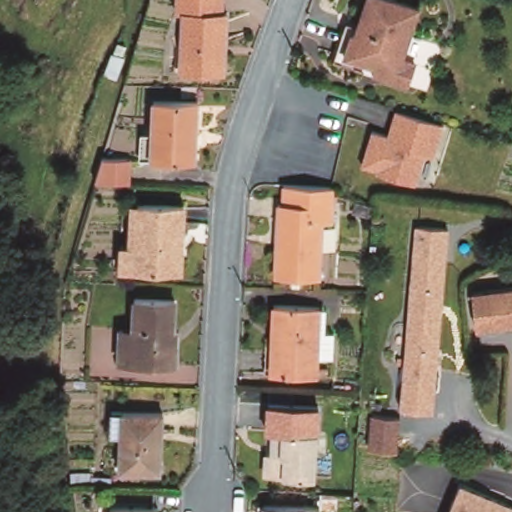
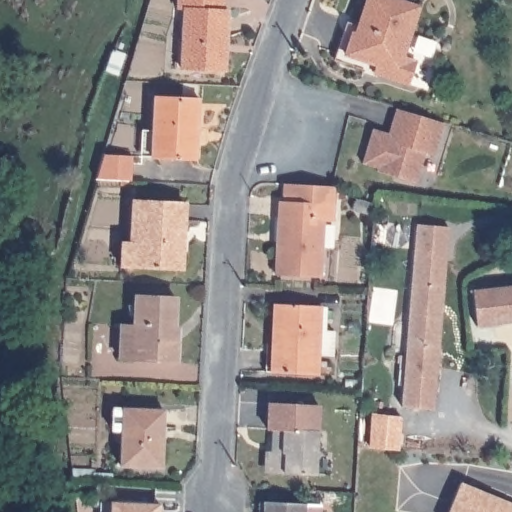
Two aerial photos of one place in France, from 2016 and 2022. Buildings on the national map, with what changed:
unchanged [(222,11),(220,71),(176,70),(178,10),(172,10),(173,0),(218,0),(217,11),(222,11)]
unchanged [(350,39),(361,6),(410,22),(392,72),(404,76),(397,97),(384,93),(357,86),(332,77),(325,75),(338,35),(350,39)]
unchanged [(431,106),(448,112),(437,148),(428,145),(421,174),(420,175),(413,173),(381,164),(382,161),(366,156),(377,119),(392,123),(400,98),(431,106)]
unchanged [(192,99),(190,159),(146,158),(149,99),(192,99)]
unchanged [(131,155),(130,180),(94,179),(102,153),(131,155)]
unchanged [(332,195),(330,223),(320,222),(316,281),(271,278),(276,209),(278,208),(281,193),(281,189),(286,189),(331,194),(332,195)]
unchanged [(382,215),(367,213),(368,205),(383,206),(382,215)]
unchanged [(121,247),(135,247),(137,206),(182,207),(180,271),(135,270),(119,270),(121,247)]
unchanged [(416,223),(449,225),(437,347),(406,344),(416,223)]
unchanged [(472,294),(512,289),(512,325),(476,329),(472,294)]
unchanged [(119,328),(132,327),(133,299),(173,301),(172,341),(176,341),(175,362),(131,360),(117,360),(119,328)]
unchanged [(318,307),(315,379),(267,377),(272,307),(318,307)]
unchanged [(437,347),(432,409),(400,406),(406,344),(437,347)]
unchanged [(311,410),(307,480),(268,478),(270,435),(263,434),(264,408),(311,410)]
unchanged [(160,414),(157,471),(116,469),(117,434),(107,433),(109,412),(160,414)]
unchanged [(372,412),(399,414),(397,450),(370,447),(372,412)]
unchanged [(458,482),(512,502),(512,512),(446,512),(458,482)]
unchanged [(152,506),(152,512),(104,512),(104,504),(152,506)]
unchanged [(299,510),(299,512),(260,512),(260,508),(299,510)]

